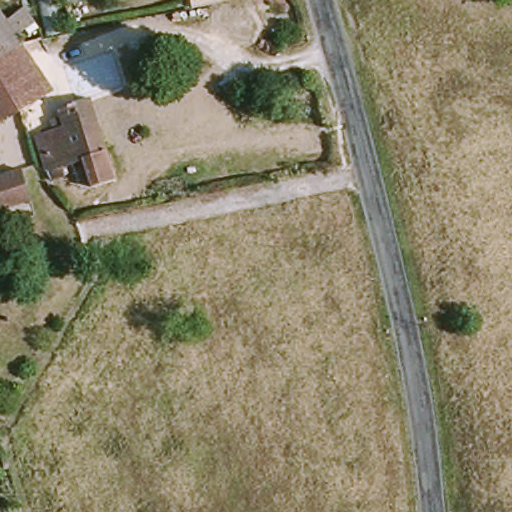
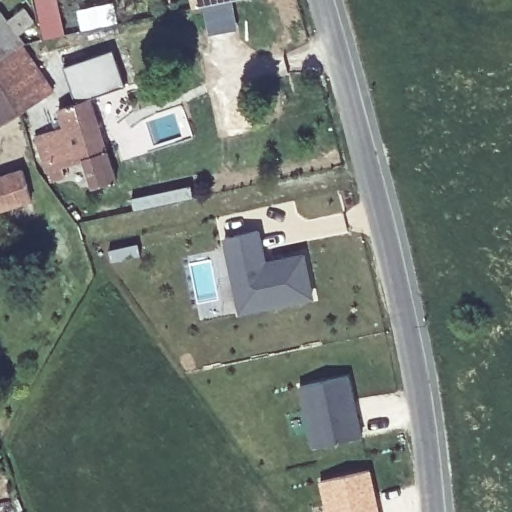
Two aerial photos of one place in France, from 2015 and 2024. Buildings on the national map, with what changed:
new [(190,0),(232,0),(192,8),(190,0)]
unchanged [(0,63),(0,22),(20,50),(1,62),(0,63)]
unchanged [(1,62),(20,50),(31,42),(63,84),(31,107),(1,62)]
unchanged [(102,95),(75,101),(64,68),(114,51),(125,86),(102,95)]
unchanged [(5,126),(0,118),(0,63),(1,62),(31,107),(5,126)]
unchanged [(74,122),(69,103),(102,95),(121,177),(98,183),(92,159),(54,167),(44,129),(74,122)]
unchanged [(32,170),(40,195),(0,209),(0,173),(3,172),(30,162),(32,170)]
new [(260,232),(267,264),(305,255),(314,297),(244,313),(227,240),(260,232)]
new [(348,373),(362,435),(308,447),(295,386),(348,373)]
new [(371,468),(380,512),(324,512),(318,480),(371,468)]

